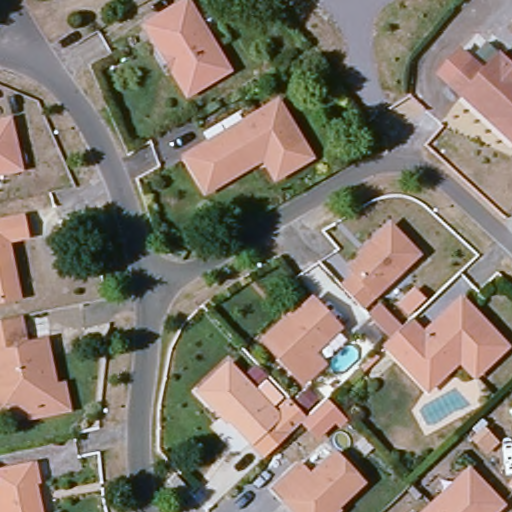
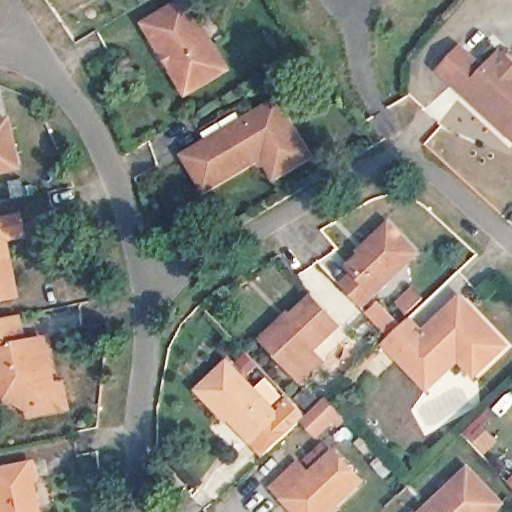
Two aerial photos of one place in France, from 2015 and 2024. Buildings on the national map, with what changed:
unchanged [(190,9),(229,71),(188,96),(150,33),(190,9)]
unchanged [(438,68),(458,46),(470,57),(493,79),(510,61),(512,63),(512,136),(438,68)]
unchanged [(207,201),(187,168),(278,113),(310,167),(277,188),(264,166),(256,171),(207,201)]
unchanged [(20,172),(0,176),(0,126),(10,124),(20,172)]
unchanged [(26,241),(4,245),(8,266),(12,265),(20,301),(0,305),(0,227),(23,223),(26,241)]
unchanged [(362,274),(356,268),(373,252),(371,249),(395,226),(423,255),(367,308),(348,288),(362,274)]
unchanged [(340,329),(314,353),(325,365),(305,384),(268,344),(264,340),(290,315),(295,319),(313,301),(340,329)]
unchanged [(434,396),(421,382),(390,350),(396,344),(381,328),(375,321),(385,311),(392,318),(407,333),(415,326),(429,340),(460,311),(467,304),(486,324),(512,351),(512,352),(484,379),(481,382),(465,366),(434,396)]
unchanged [(35,420),(33,411),(24,404),(2,408),(0,396),(0,324),(17,321),(22,349),(51,343),(60,386),(70,384),(75,412),(35,420)]
unchanged [(226,419),(225,422),(201,398),(230,371),(280,423),(254,448),(226,419)]
unchanged [(342,414),(318,437),(305,422),(308,419),(328,400),(342,414)]
unchanged [(307,471),(318,483),(342,459),(370,487),(344,512),(299,512),(282,495),(307,471)]
unchanged [(0,505),(3,505),(0,490),(0,480),(38,472),(41,489),(39,489),(44,512),(0,512),(0,505)]
unchanged [(166,479),(173,472),(185,485),(179,492),(166,479)]
unchanged [(435,511),(471,476),(504,510),(502,512),(433,512),(435,511)]
unchanged [(512,477),(512,485),(508,481),(512,477)]

